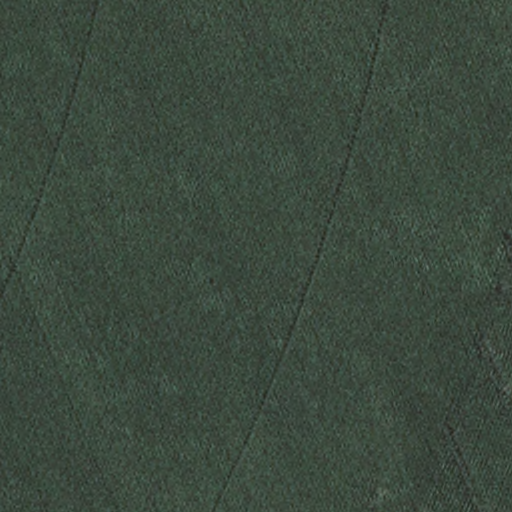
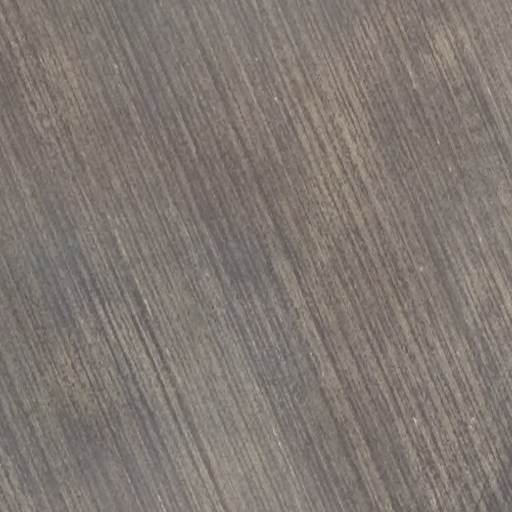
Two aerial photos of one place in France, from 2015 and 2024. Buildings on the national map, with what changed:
[]

